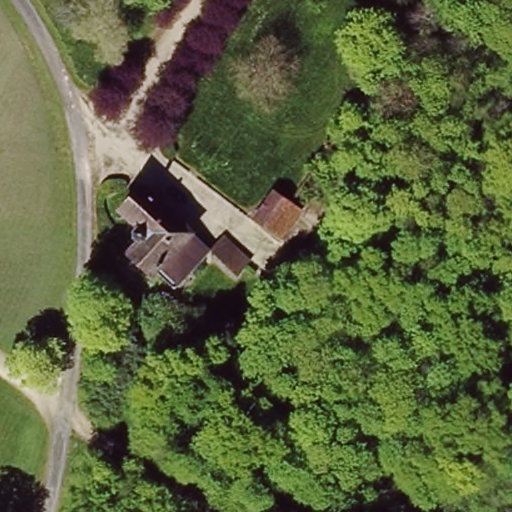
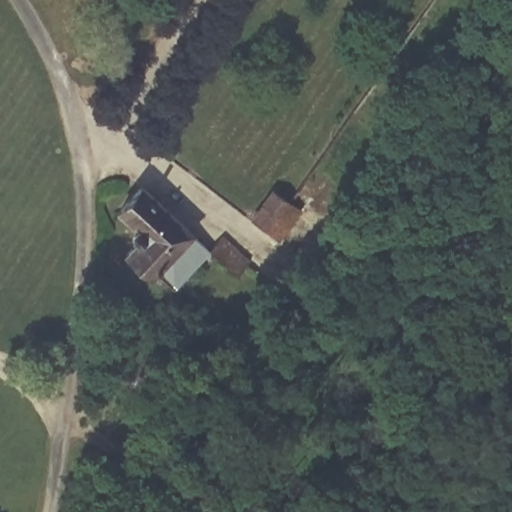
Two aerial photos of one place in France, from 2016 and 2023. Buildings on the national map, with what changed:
unchanged [(256,257),(240,276),(213,252),(183,287),(163,268),(154,279),(125,253),(145,232),(120,210),(146,180),(216,242),(227,230),(256,257)]
unchanged [(287,237),(252,216),(271,185),(306,206),(287,237)]

